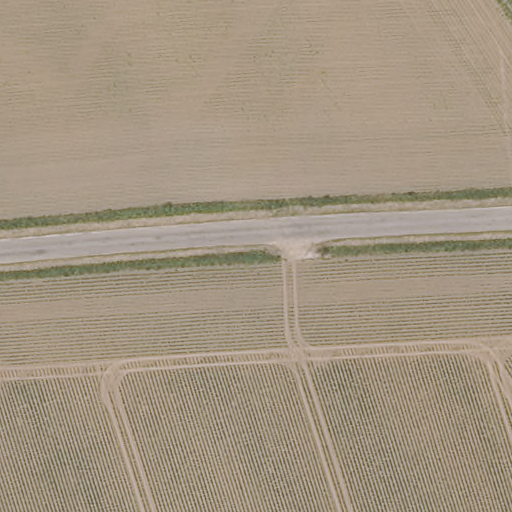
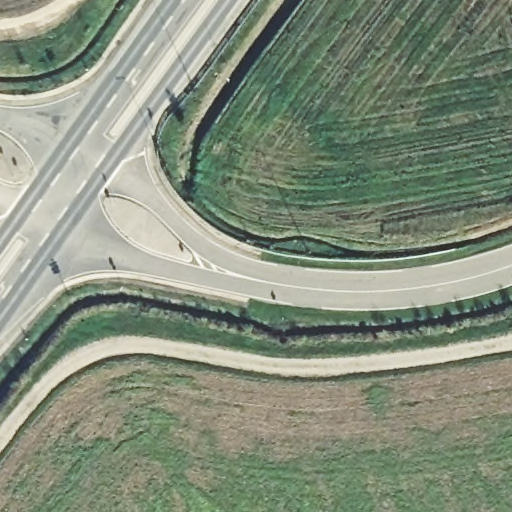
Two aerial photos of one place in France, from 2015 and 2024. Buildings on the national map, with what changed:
[]

